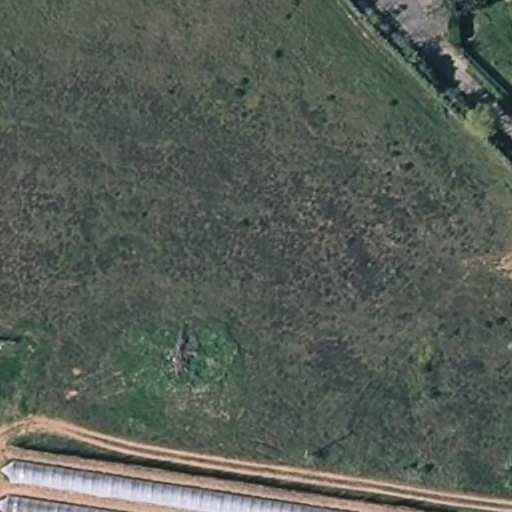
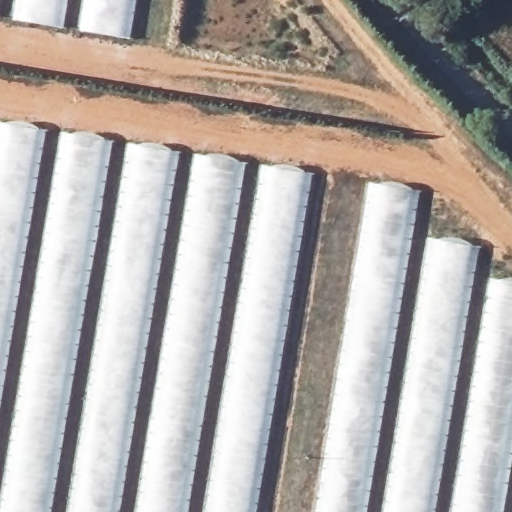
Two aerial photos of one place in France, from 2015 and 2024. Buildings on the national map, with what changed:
new [(255,512),(0,512),(0,123),(311,173),(255,512)]
new [(420,192),(412,238),(480,246),(473,277),(512,283),(512,512),(316,512),(370,182),(420,192)]

